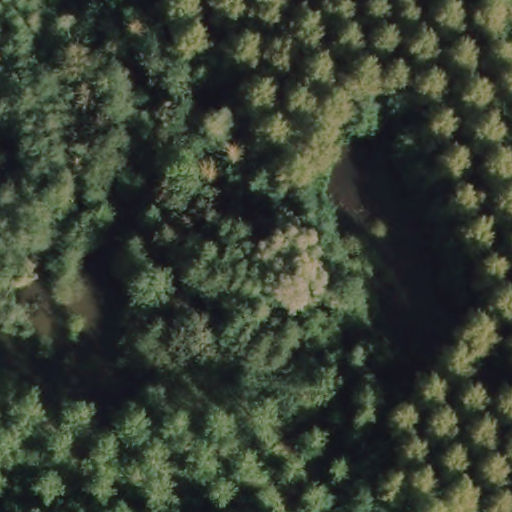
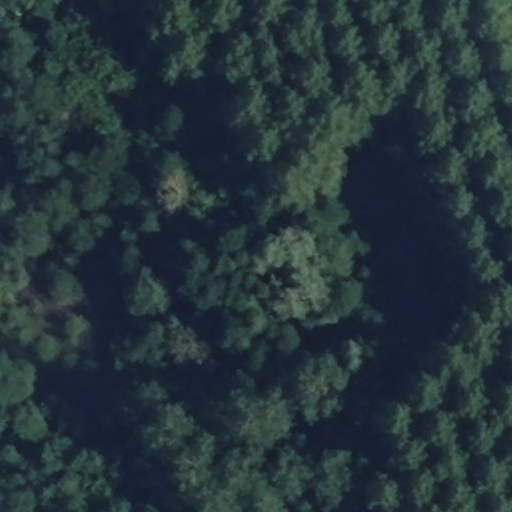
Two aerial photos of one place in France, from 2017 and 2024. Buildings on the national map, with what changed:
[]

